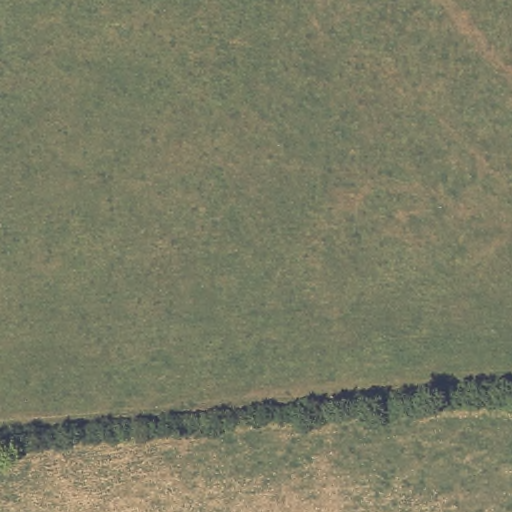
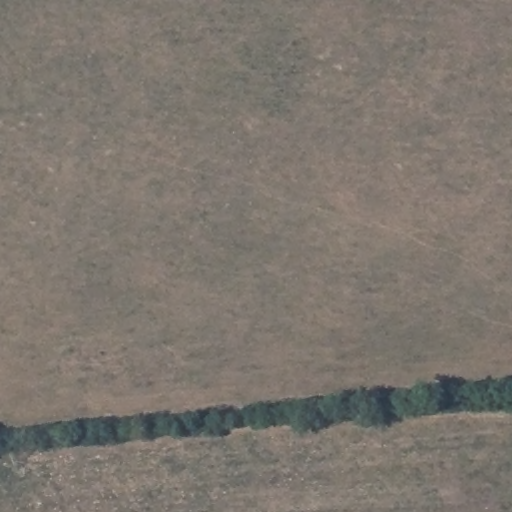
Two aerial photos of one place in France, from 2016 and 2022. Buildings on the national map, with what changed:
[]

